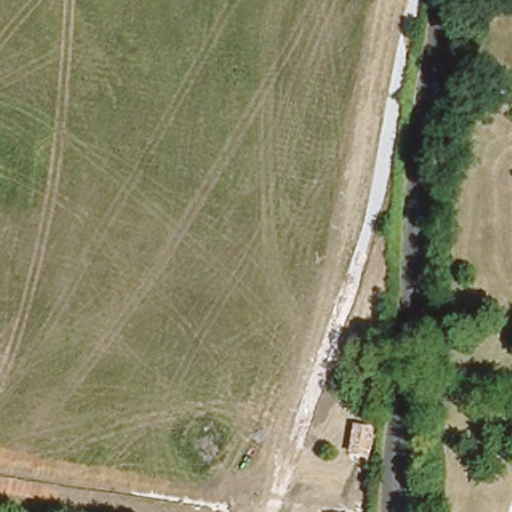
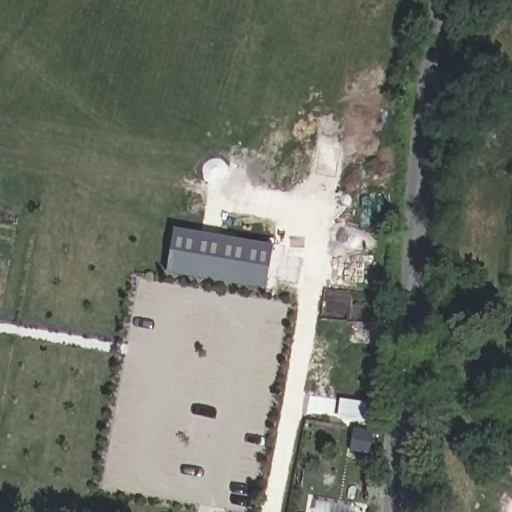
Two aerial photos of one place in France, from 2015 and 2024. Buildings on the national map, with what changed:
new [(266,287),(167,269),(175,226),(275,243),(266,287)]
unchanged [(349,472),(353,451),(367,453),(365,468),(360,467),(358,475),(349,472)]
unchanged [(346,512),(347,506),(367,510),(367,512),(346,512)]

